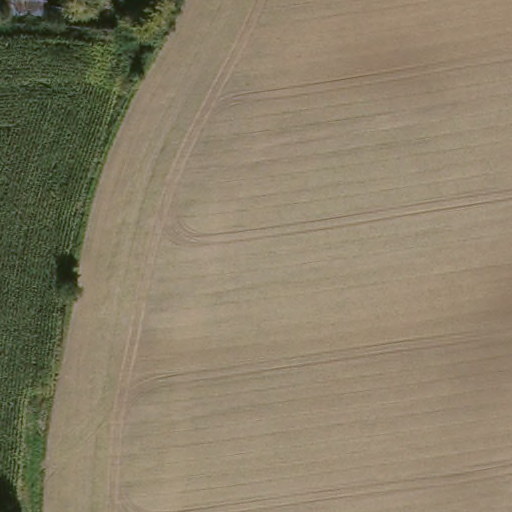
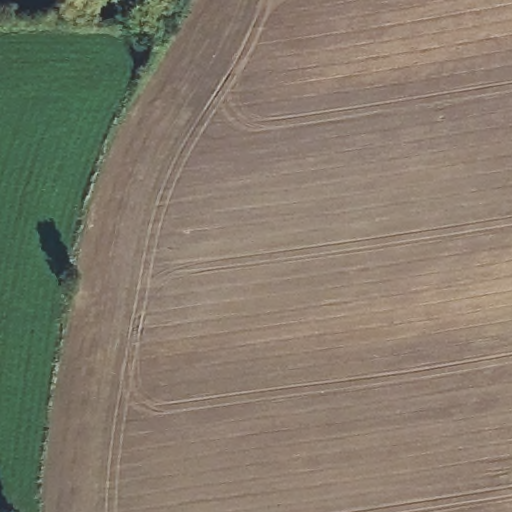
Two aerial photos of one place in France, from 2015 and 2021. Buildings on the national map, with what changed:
unchanged [(50,8),(48,17),(35,14),(35,15),(11,13),(0,14),(0,0),(36,0),(35,5),(50,8)]

